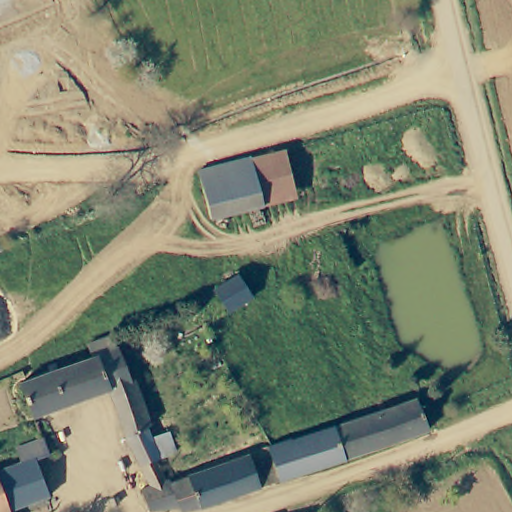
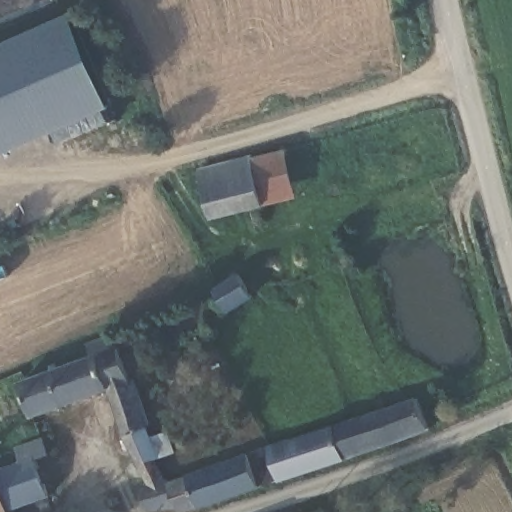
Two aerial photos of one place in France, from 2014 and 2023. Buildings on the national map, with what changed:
new [(114,106),(1,156),(0,154),(0,45),(71,14),(114,106)]
unchanged [(262,160),(294,151),(308,199),(275,207),(262,160)]
unchanged [(221,220),(209,174),(257,161),(262,160),(275,207),(221,220)]
unchanged [(218,294),(215,290),(222,285),(217,276),(234,265),(254,297),(229,311),(227,306),(209,312),(207,300),(218,294)]
unchanged [(204,326),(229,311),(235,325),(210,337),(204,326)]
unchanged [(189,512),(185,508),(156,510),(147,490),(156,486),(131,436),(115,390),(39,418),(26,385),(99,357),(94,346),(118,336),(122,349),(125,348),(134,378),(140,380),(156,425),(153,426),(164,460),(161,461),(171,481),(179,483),(274,447),(286,481),(193,512),(189,512)]
unchanged [(296,440),(298,443),(422,399),(435,431),(286,481),(274,447),(296,440)]
unchanged [(18,450),(45,440),(50,455),(36,460),(50,497),(10,512),(0,512),(0,471),(23,462),(18,450)]

